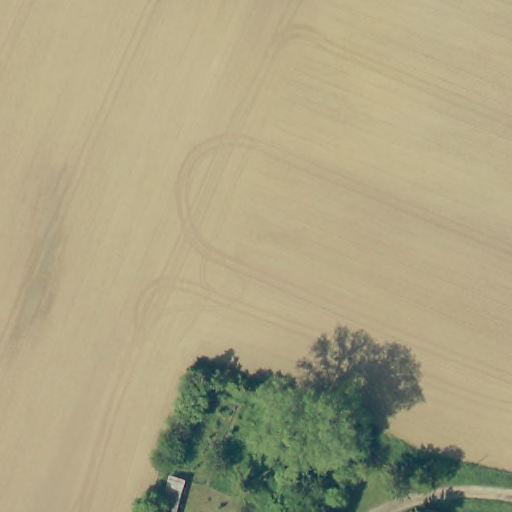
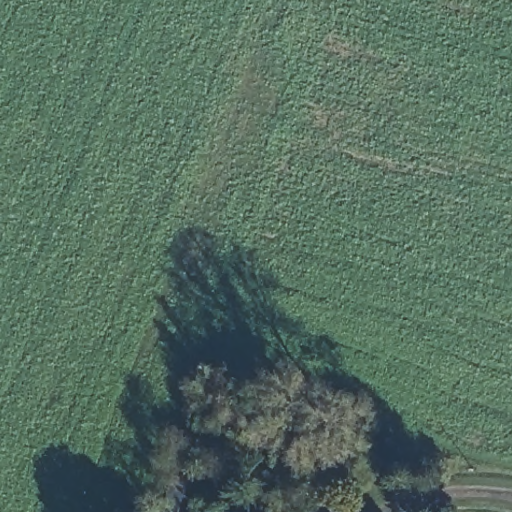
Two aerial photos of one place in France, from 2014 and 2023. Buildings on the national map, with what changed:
unchanged [(184,512),(168,512),(186,457),(199,461),(184,512)]

